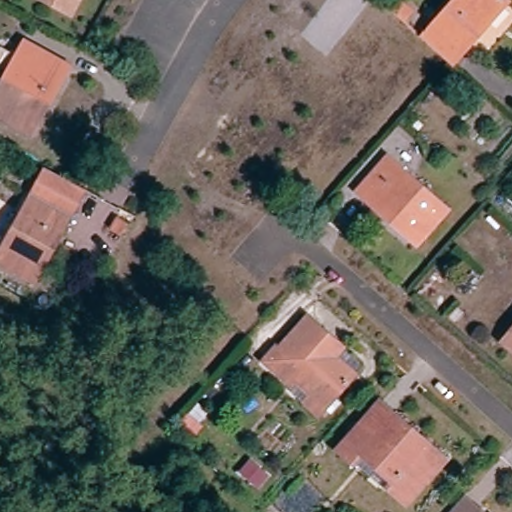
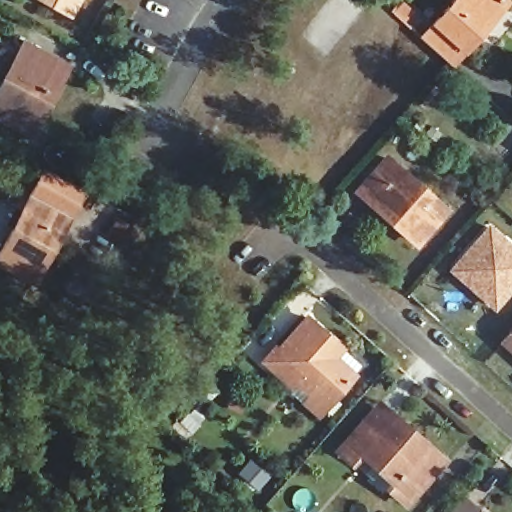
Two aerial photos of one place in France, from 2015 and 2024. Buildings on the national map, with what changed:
unchanged [(46,0),(79,0),(70,15),(46,0)]
unchanged [(425,39),(461,0),(509,0),(512,3),(484,34),(480,30),(465,47),(470,51),(455,67),(453,65),(450,62),(425,39)]
unchanged [(0,118),(0,84),(24,43),(37,51),(69,68),(51,98),(30,135),(0,118)]
unchanged [(370,206),(360,197),(377,178),(390,163),(447,214),(417,248),(405,237),(384,218),(370,206)]
unchanged [(0,283),(0,250),(37,181),(70,199),(76,202),(51,245),(22,295),(0,283)]
new [(512,241),(512,292),(495,312),(446,269),(490,221),(512,241)]
unchanged [(301,398),(307,390),(295,379),(289,383),(262,358),(273,346),(276,349),(305,317),(332,341),(338,346),(331,355),(350,373),(322,404),(316,412),(301,398)]
unchanged [(512,339),(512,349),(507,345),(512,339)]
unchanged [(342,448),(368,420),(383,404),(395,415),(445,460),(405,505),(387,489),(355,460),(342,448)]
unchanged [(453,512),(465,498),(481,512),(453,512)]

